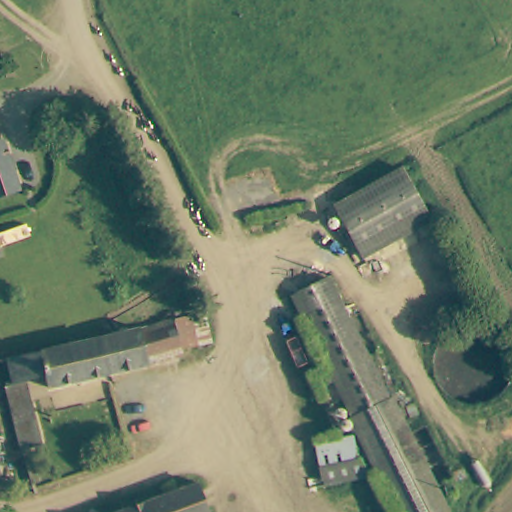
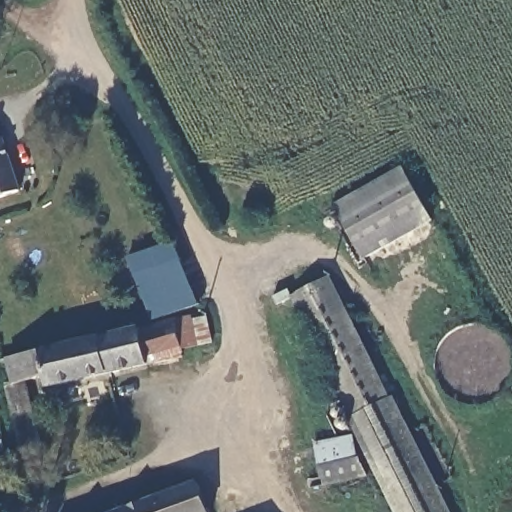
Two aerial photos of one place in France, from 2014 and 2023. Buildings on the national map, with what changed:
unchanged [(0,197),(0,133),(1,139),(7,137),(16,171),(21,191),(0,197)]
unchanged [(336,209),(405,170),(432,216),(363,256),(336,209)]
new [(174,242),(199,305),(176,313),(153,320),(127,258),(174,242)]
unchanged [(454,512),(397,512),(293,290),(334,272),(454,512)]
unchanged [(55,390),(53,383),(31,388),(44,446),(19,453),(6,391),(13,390),(6,358),(177,315),(179,322),(209,316),(214,335),(214,340),(185,347),(187,357),(55,390)]
unchanged [(357,436),(367,478),(321,487),(310,445),(357,436)]
unchanged [(196,486),(204,512),(123,512),(196,486)]

